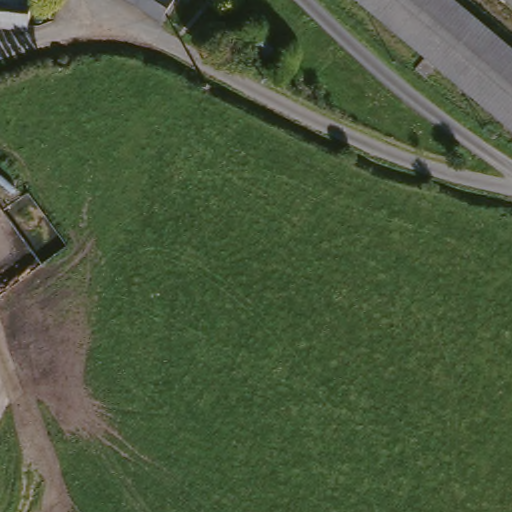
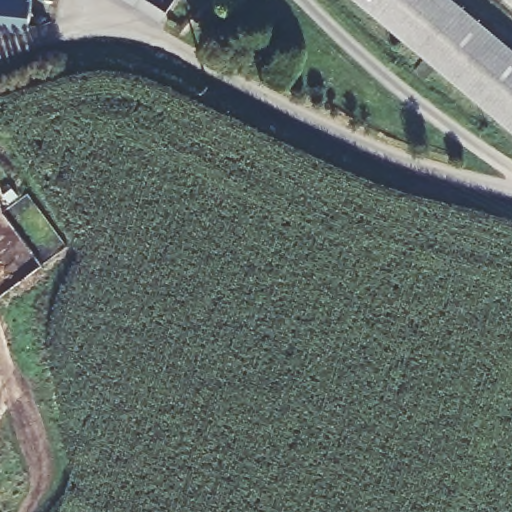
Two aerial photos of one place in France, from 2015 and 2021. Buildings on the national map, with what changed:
unchanged [(35,0),(32,32),(0,30),(0,0),(28,0),(35,0)]
unchanged [(157,24),(137,11),(121,0),(169,0),(173,3),(157,24)]
unchanged [(512,53),(512,132),(358,0),(449,0),(512,53)]
unchanged [(512,6),(505,0),(512,0),(512,6)]

